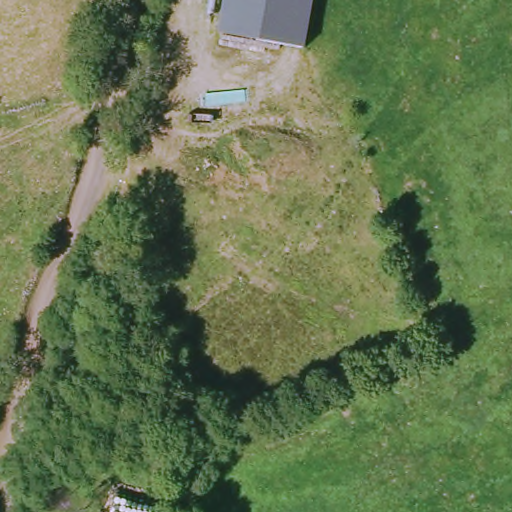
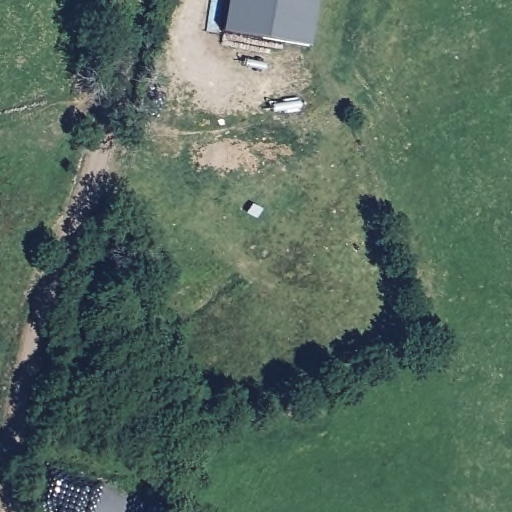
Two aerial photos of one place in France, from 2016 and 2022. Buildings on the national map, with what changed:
unchanged [(226,0),(315,0),(307,48),(220,33),(226,0)]

